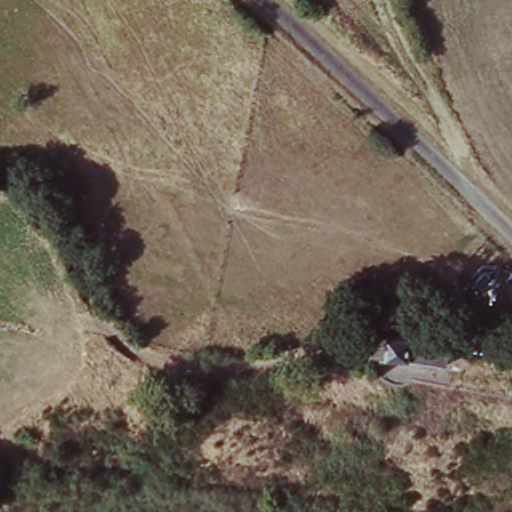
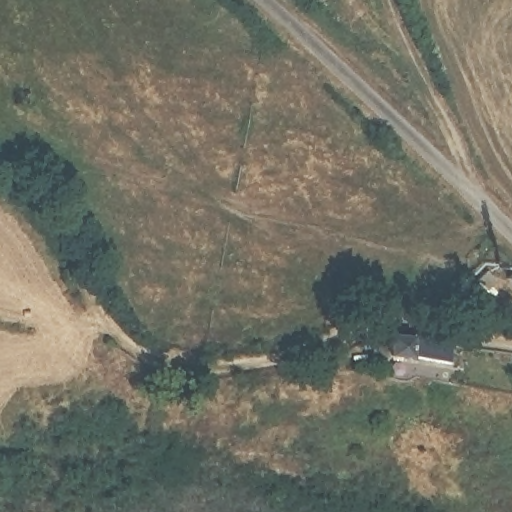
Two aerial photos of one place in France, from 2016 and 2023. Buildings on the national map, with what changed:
unchanged [(428,363),(389,357),(371,355),(371,341),(390,337),(430,342),(450,345),(446,366),(428,363)]

